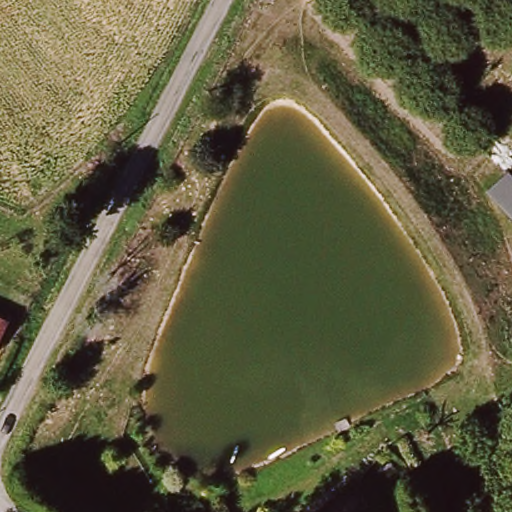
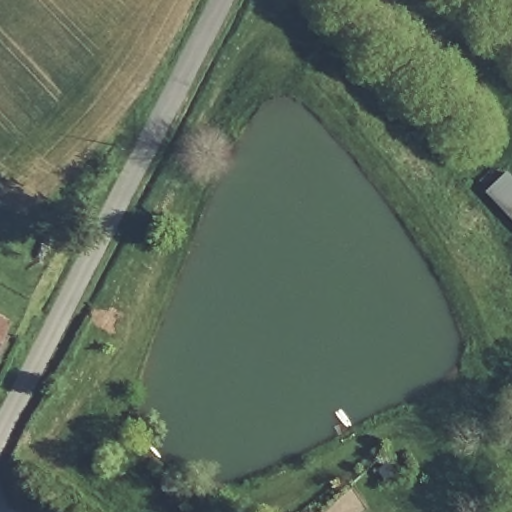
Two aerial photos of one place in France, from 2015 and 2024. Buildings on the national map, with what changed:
unchanged [(512,177),(512,218),(487,191),(508,172),(512,177)]
unchanged [(0,333),(0,323),(4,325),(0,333)]
unchanged [(0,355),(0,336),(8,340),(0,355)]

